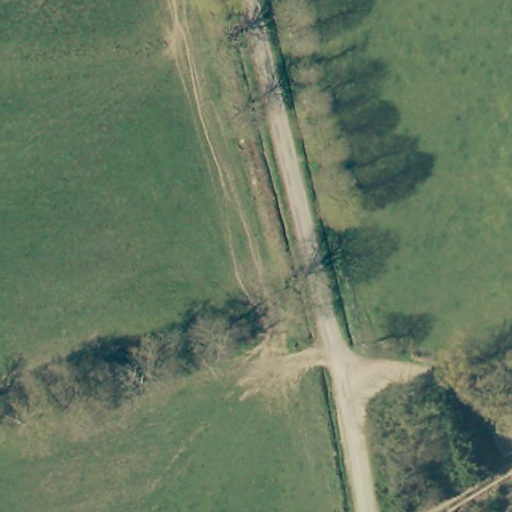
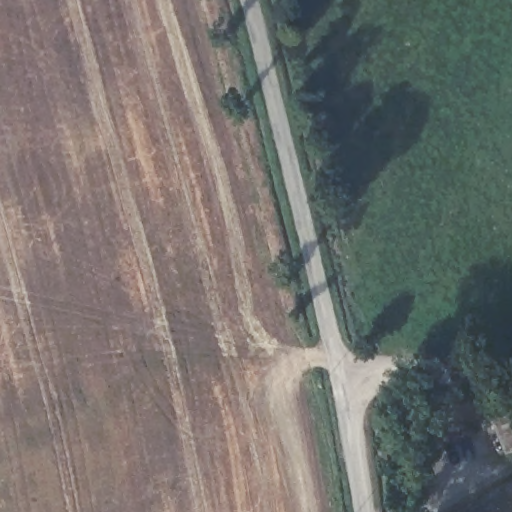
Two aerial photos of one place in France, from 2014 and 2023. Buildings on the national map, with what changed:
unchanged [(512,411),(512,455),(508,456),(492,422),(512,411)]

